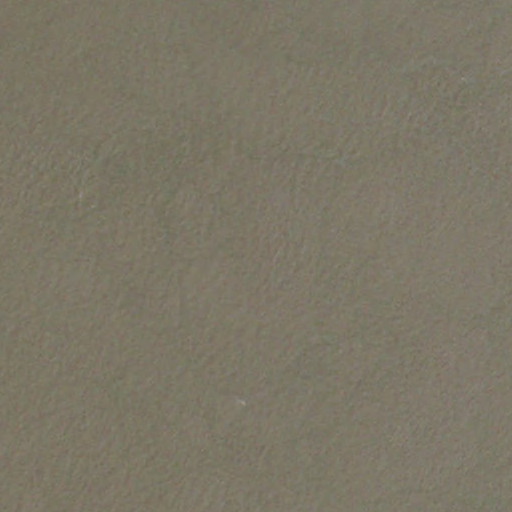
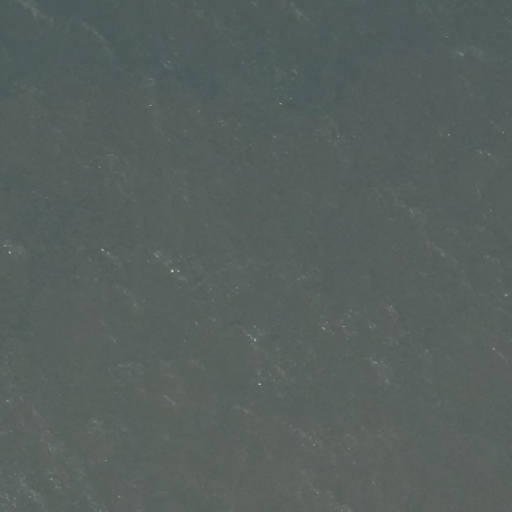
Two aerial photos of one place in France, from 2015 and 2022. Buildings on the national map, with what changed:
[]

